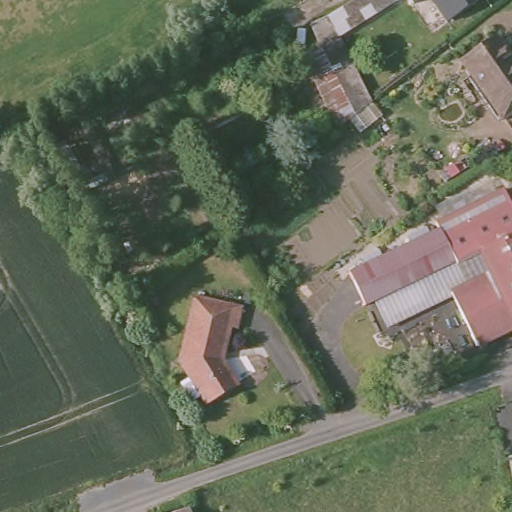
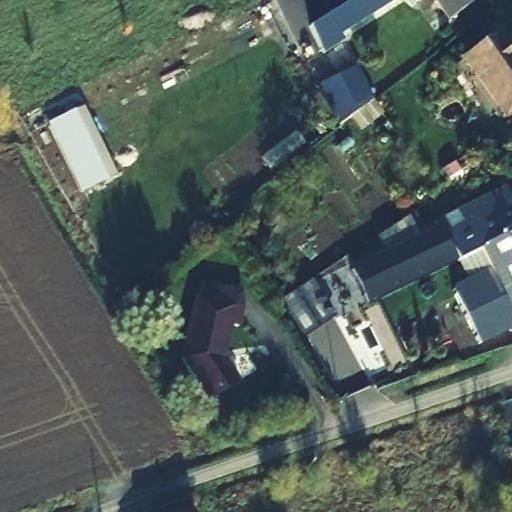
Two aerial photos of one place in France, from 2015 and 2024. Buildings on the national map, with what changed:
unchanged [(373,100),(354,109),(316,25),(354,0),(399,0),(345,38),(373,100)]
unchanged [(476,0),(453,15),(444,0),(476,0)]
unchanged [(512,53),(512,108),(508,111),(464,57),(494,32),(512,53)]
new [(47,122),(85,106),(117,173),(109,176),(110,179),(82,193),(47,122)]
unchanged [(492,270),(482,249),(458,260),(439,218),(507,186),(512,196),(512,326),(480,341),(455,287),(492,270)]
unchanged [(458,260),(367,302),(353,269),(443,227),(458,260)]
unchanged [(193,368),(185,353),(197,292),(242,303),(237,322),(231,321),(222,353),(237,377),(208,394),(205,388),(193,396),(181,376),(193,368)]
unchanged [(192,509),(193,512),(179,512),(192,509)]

